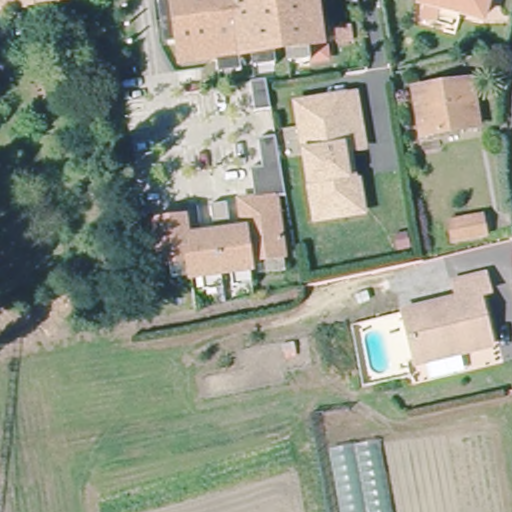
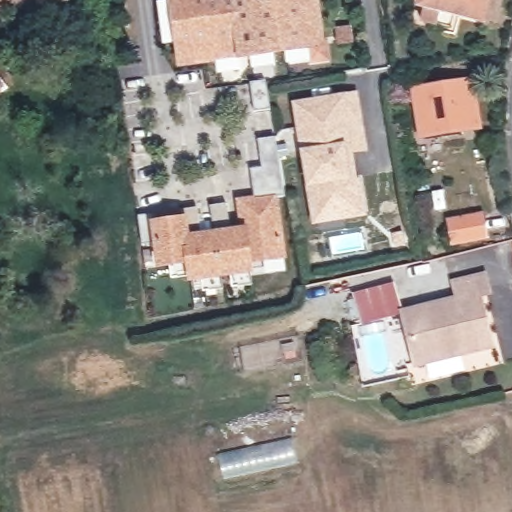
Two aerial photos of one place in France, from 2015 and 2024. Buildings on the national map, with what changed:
unchanged [(26,10),(1,15),(0,10),(0,0),(27,0),(24,0),(26,10)]
unchanged [(59,0),(39,2),(38,0),(59,0)]
unchanged [(174,42),(157,44),(152,5),(169,2),(168,0),(307,0),(313,45),(303,46),(305,64),(285,66),(283,49),(268,51),(270,68),(250,71),(248,54),(234,55),(236,73),(216,76),(214,59),(177,64),(174,42)]
unchanged [(424,0),(488,0),(484,17),(424,4),(424,0)]
unchanged [(416,80),(469,76),(470,96),(477,95),(479,122),(462,124),(462,132),(420,135),(416,80)]
unchanged [(254,124),(249,95),(266,92),(270,122),(254,124)]
unchanged [(306,208),(293,129),(290,106),(304,105),(348,97),(352,121),(356,150),(342,152),(347,185),(351,184),(354,208),(356,215),(308,223),(306,208)]
unchanged [(204,275),(191,276),(191,274),(174,276),(172,261),(160,263),(157,241),(142,244),(138,214),(154,212),(155,221),(182,217),(181,208),(197,205),(201,234),(214,232),(210,204),(226,201),(230,230),(243,228),(239,199),(254,197),(250,166),(261,165),(257,136),(274,134),(283,194),(274,195),(283,254),(285,268),(268,271),(266,256),(249,258),(251,267),(253,282),(235,285),(233,270),(222,272),(224,287),(206,290),(204,275)]
unchanged [(459,250),(456,239),(447,209),(479,199),(488,229),(491,240),(459,250)]
unchanged [(408,313),(461,296),(455,278),(485,270),(490,286),(479,290),(493,338),(422,360),(408,313)]
new [(405,311),(363,324),(354,295),(394,283),(405,311)]
demolished [(396,512),(343,512),(331,448),(382,440),(396,512)]

